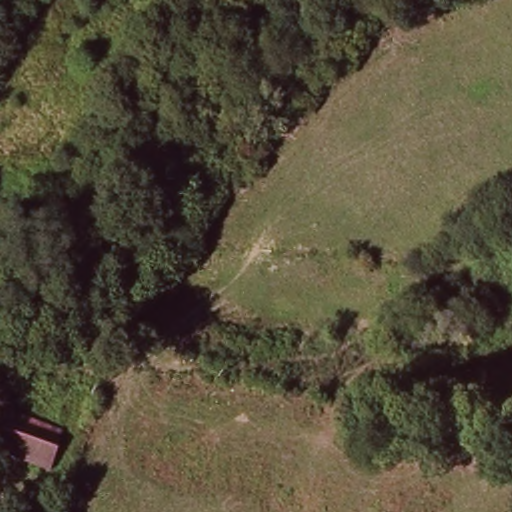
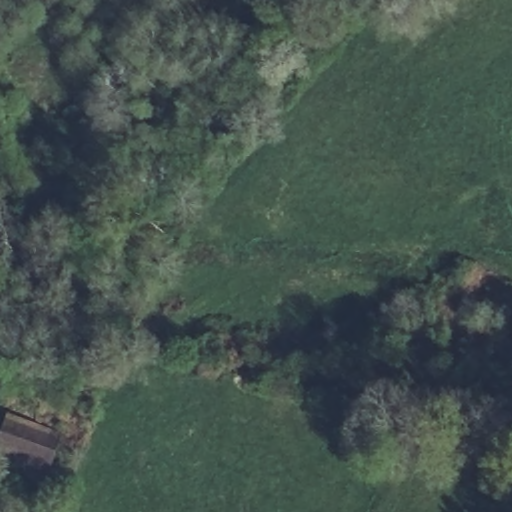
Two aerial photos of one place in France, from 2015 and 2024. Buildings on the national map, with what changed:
unchanged [(55,432),(45,466),(0,452),(0,421),(2,416),(55,432)]

